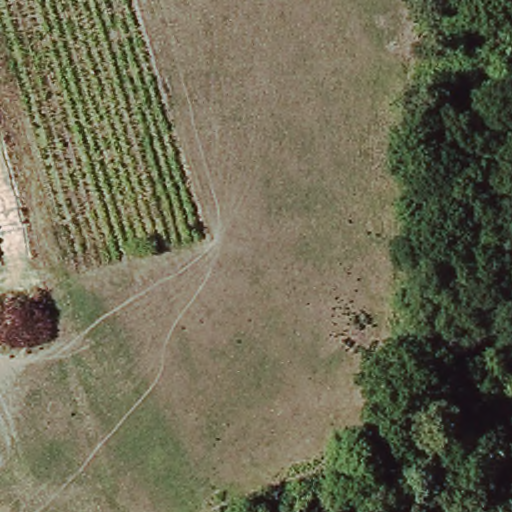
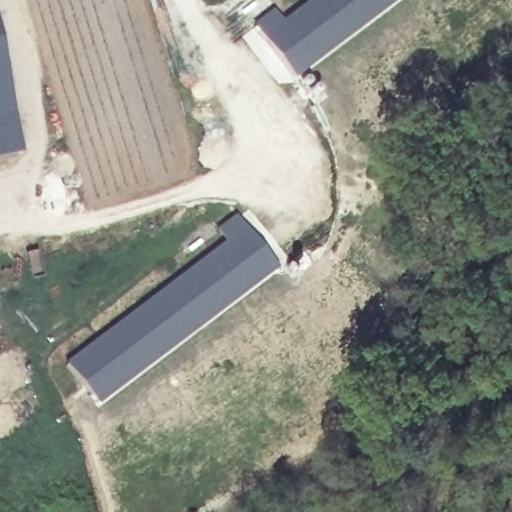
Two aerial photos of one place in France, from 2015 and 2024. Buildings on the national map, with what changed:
new [(284,20),(310,0),(399,0),(296,79),(254,22),(275,7),(284,20)]
new [(0,158),(0,52),(23,153),(0,158)]
new [(277,268),(99,406),(65,364),(226,241),(217,230),(236,215),(277,268)]

